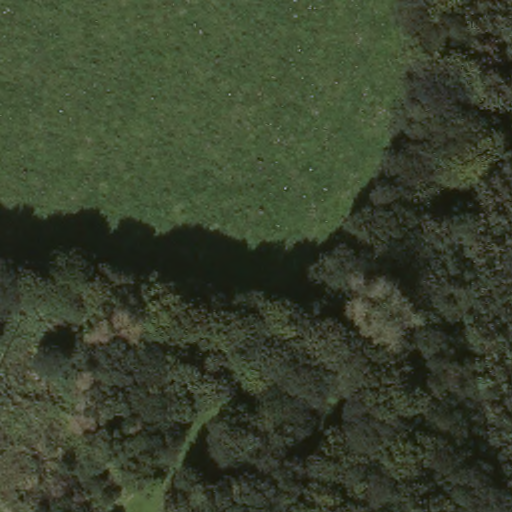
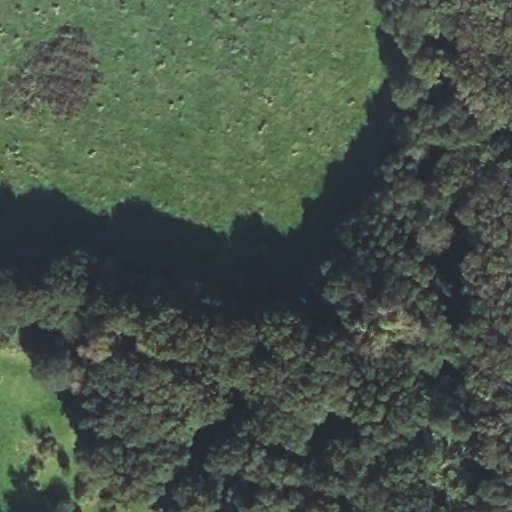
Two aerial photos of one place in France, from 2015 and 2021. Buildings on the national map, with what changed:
[]

